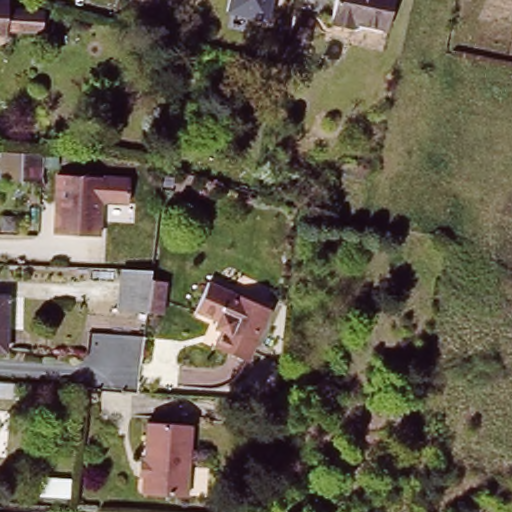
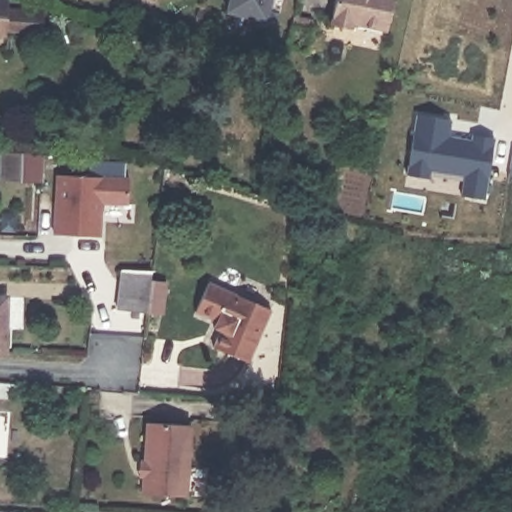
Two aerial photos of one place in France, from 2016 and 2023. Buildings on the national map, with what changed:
unchanged [(9,5),(45,7),(44,35),(8,34),(0,34),(0,0),(9,0),(9,5)]
unchanged [(270,20),(227,10),(229,0),(273,0),(270,20)]
unchanged [(378,33),(345,26),(343,30),(322,24),(327,0),(387,0),(378,33)]
new [(407,175),(417,116),(443,121),(442,126),(450,128),(448,139),(472,142),(472,137),(495,140),(484,202),(460,198),(464,178),(430,172),(428,181),(407,177),(407,175)]
unchanged [(43,159),(42,185),(1,182),(2,156),(43,159)]
unchanged [(130,178),(129,203),(107,202),(102,202),(101,236),(55,233),(58,175),(110,177),(130,178)]
unchanged [(148,272),(143,312),(113,311),(115,271),(148,272)]
unchanged [(201,317),(212,287),(275,310),(255,363),(220,351),(227,334),(220,331),(222,324),(208,319),(201,317)]
unchanged [(0,352),(0,296),(4,296),(2,352),(0,352)]
unchanged [(22,379),(22,398),(0,398),(0,378),(22,379)]
unchanged [(187,497),(184,497),(142,495),(147,423),(192,426),(187,497)]

